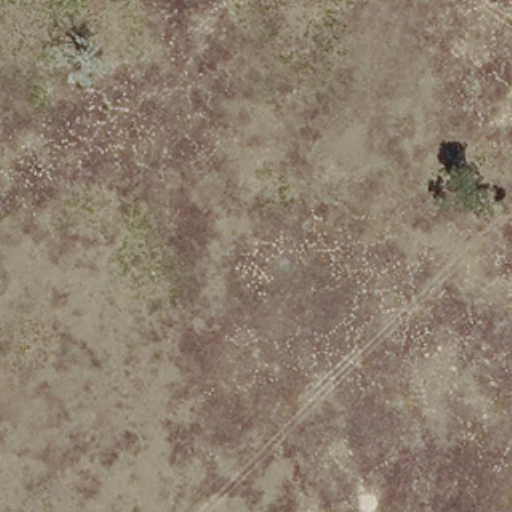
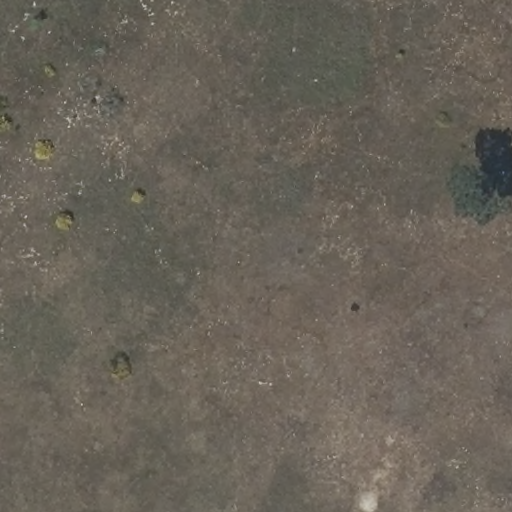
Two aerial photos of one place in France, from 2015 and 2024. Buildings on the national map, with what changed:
[]

